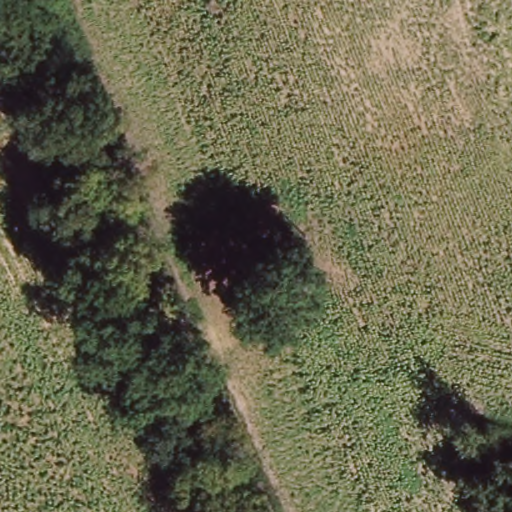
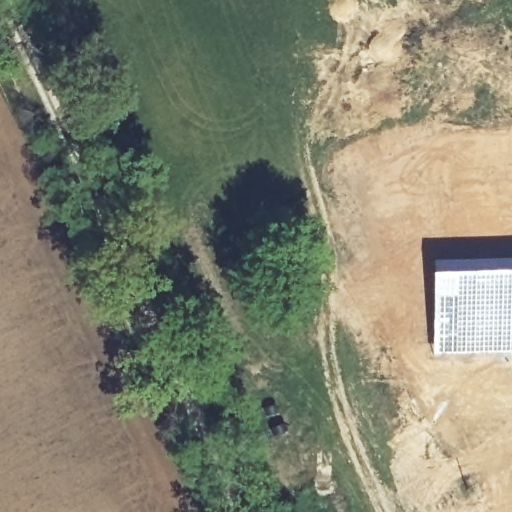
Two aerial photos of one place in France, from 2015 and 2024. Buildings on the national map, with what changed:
new [(470,314),(434,314),(433,265),(512,264),(512,354),(468,354),(470,314)]

